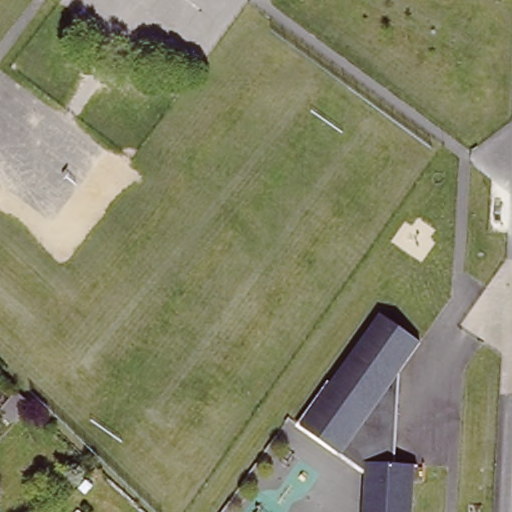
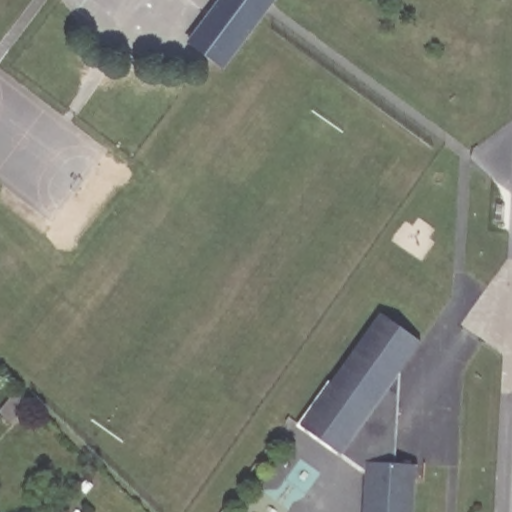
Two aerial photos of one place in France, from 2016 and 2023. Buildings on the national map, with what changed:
new [(276,0),(223,72),(185,43),(217,0),(276,0)]
unchanged [(365,471),(300,423),(381,310),(425,345),(403,372),(398,460),(417,463),(415,512),(364,512),(365,471)]
unchanged [(30,411),(12,432),(0,421),(0,416),(15,398),(30,411)]

